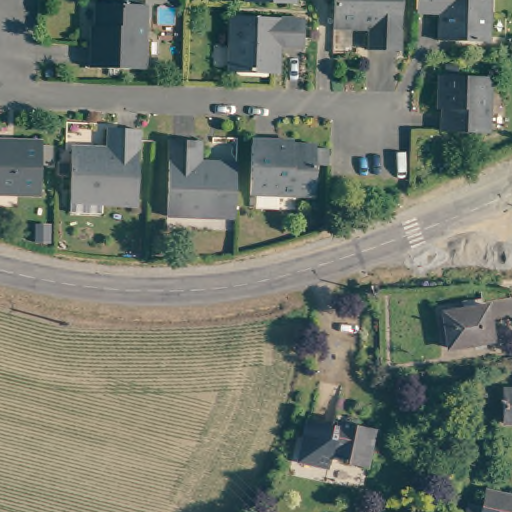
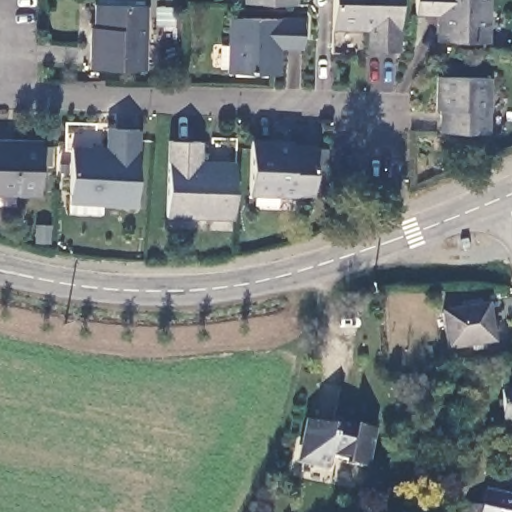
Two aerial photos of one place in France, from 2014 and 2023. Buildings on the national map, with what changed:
unchanged [(86,65),(87,37),(91,37),(93,0),(119,0),(144,1),(141,66),(86,65)]
unchanged [(406,0),(404,51),(369,50),(370,30),(334,29),(336,0),(406,0)]
unchanged [(486,0),(484,45),(441,42),(441,16),(413,15),(414,0),(486,0)]
unchanged [(300,11),(298,42),(273,40),(271,67),(225,65),(226,9),(300,11)]
unchanged [(483,130),(434,127),(435,105),(430,104),(432,72),(484,75),(483,130)]
unchanged [(132,202),(69,200),(71,144),(104,145),(105,125),(135,125),(132,202)]
unchanged [(0,189),(0,141),(11,141),(12,135),(40,136),(38,189),(0,189)]
unchanged [(312,192),(249,191),(250,136),(275,137),(275,141),(314,141),(312,192)]
unchanged [(164,213),(166,137),(199,137),(199,159),(233,159),(231,215),(164,213)]
unchanged [(496,345),(452,350),(447,313),(490,306),(496,345)]
unchanged [(503,424),(504,390),(512,391),(512,424),(503,424)]
unchanged [(292,460),(293,454),(296,420),(372,426),(367,462),(318,458),(317,463),(292,460)]
unchanged [(512,495),(512,512),(468,512),(470,503),(485,506),(485,504),(489,489),(512,495)]

